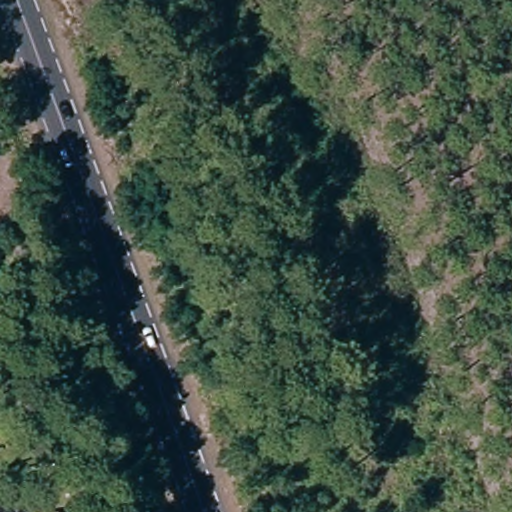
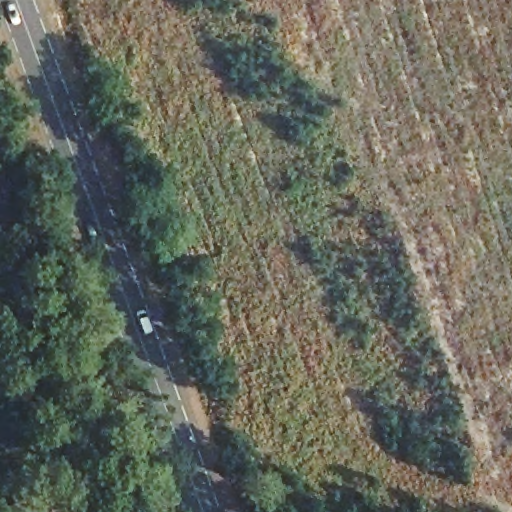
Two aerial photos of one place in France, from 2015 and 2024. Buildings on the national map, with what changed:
unchanged [(27,497),(32,510),(33,512),(0,512),(0,506),(27,497)]

